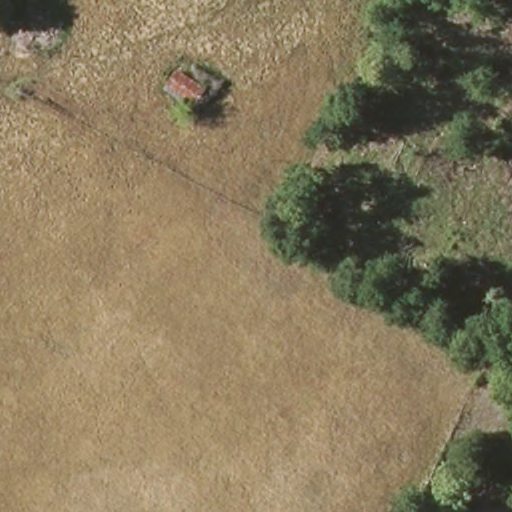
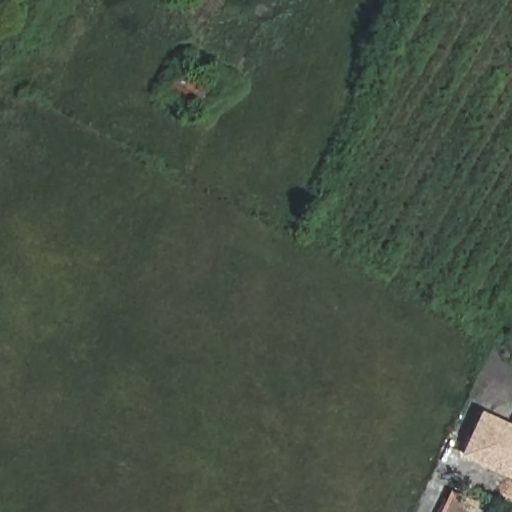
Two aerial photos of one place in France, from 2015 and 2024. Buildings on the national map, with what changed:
unchanged [(171,90),(181,76),(205,91),(196,105),(171,90)]
new [(486,403),(500,410),(487,440),(472,433),(486,403)]
new [(458,455),(479,410),(512,425),(512,479),(458,455)]
new [(469,512),(439,512),(450,491),(474,502),(469,512)]

